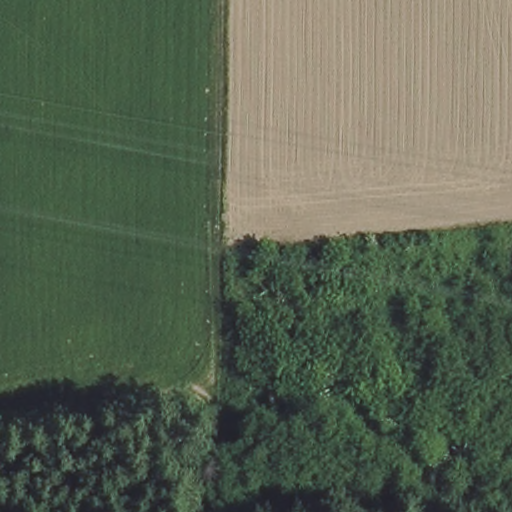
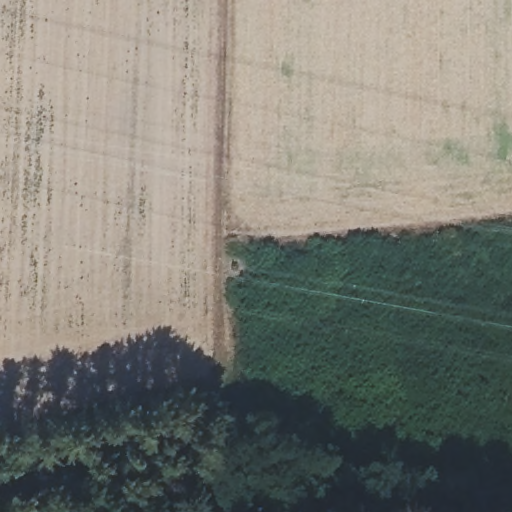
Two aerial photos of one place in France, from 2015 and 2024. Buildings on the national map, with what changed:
[]

